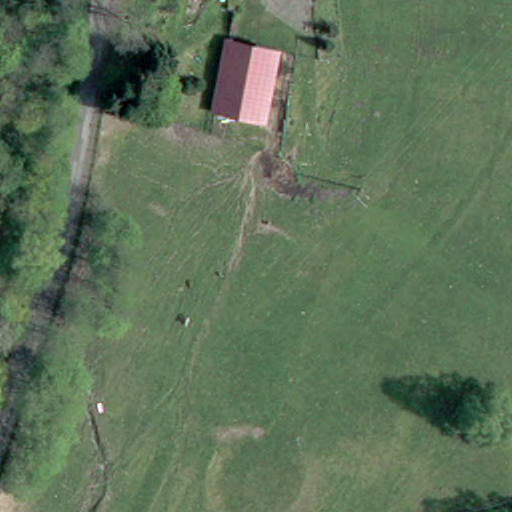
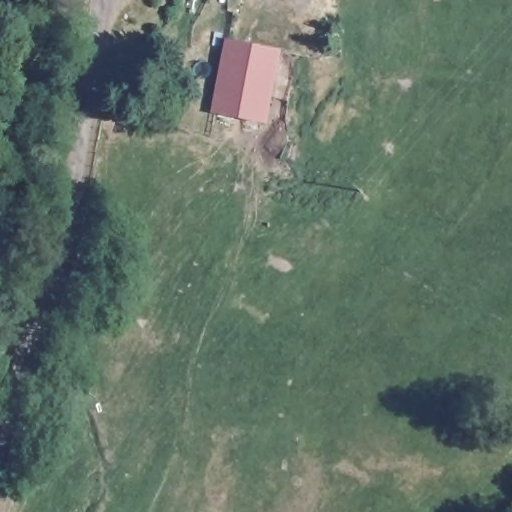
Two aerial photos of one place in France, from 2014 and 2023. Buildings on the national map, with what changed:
unchanged [(264,119),(215,109),(226,37),(275,47),(264,119)]

